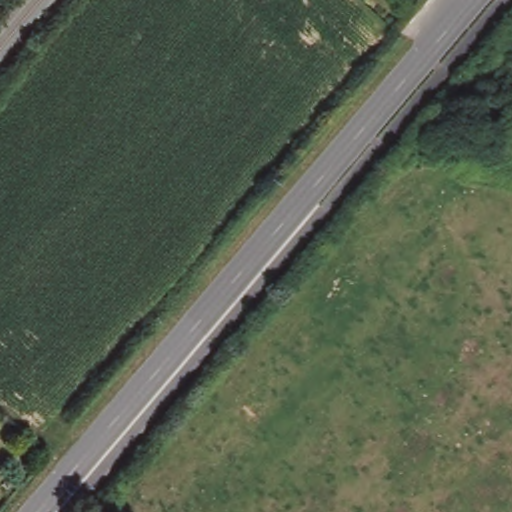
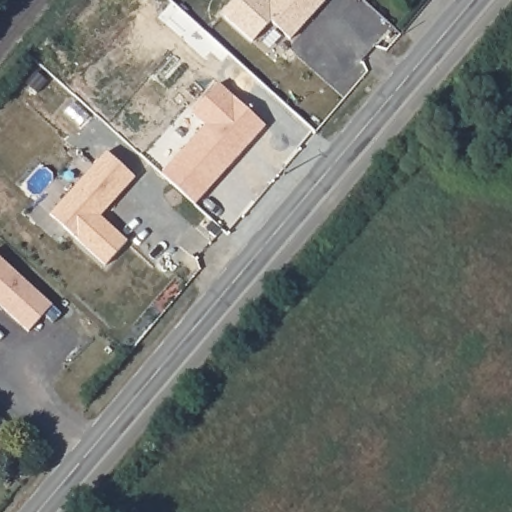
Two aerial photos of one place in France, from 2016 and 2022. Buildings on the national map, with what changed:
new [(234,0),(325,0),(289,39),(268,21),(251,40),(221,14),(234,0)]
new [(194,205),(160,174),(205,126),(191,114),(218,84),(265,125),(194,205)]
new [(49,215),(106,152),(135,177),(99,216),(127,239),(104,265),(49,215)]
new [(53,305),(28,332),(0,308),(0,258),(53,305)]

